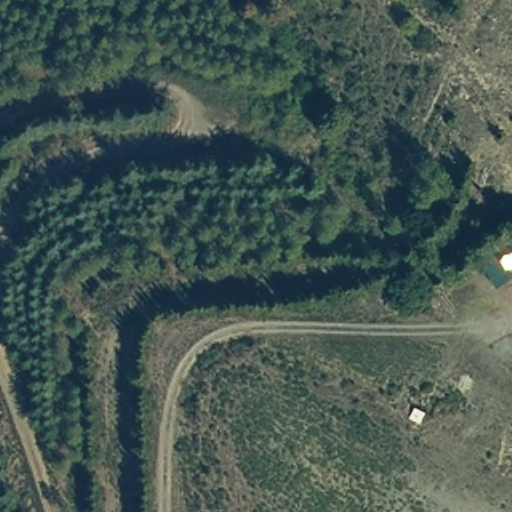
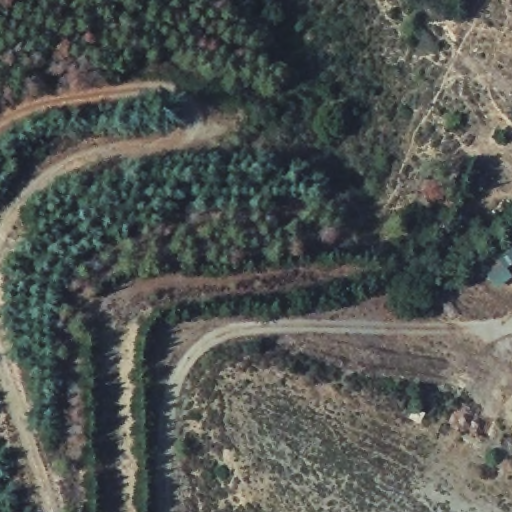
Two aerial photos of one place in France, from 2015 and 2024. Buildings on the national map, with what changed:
unchanged [(505,270),(492,251),(512,238),(512,266),(505,270)]

